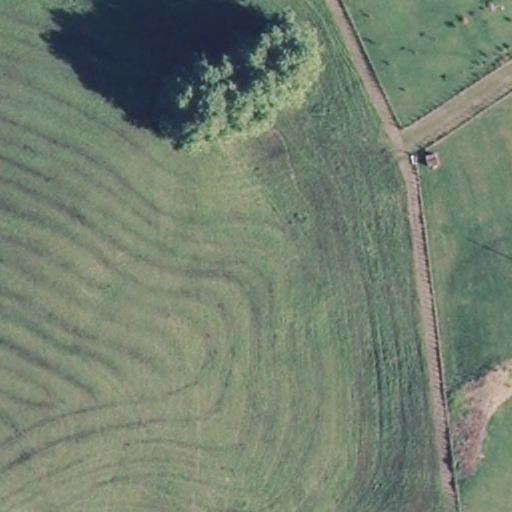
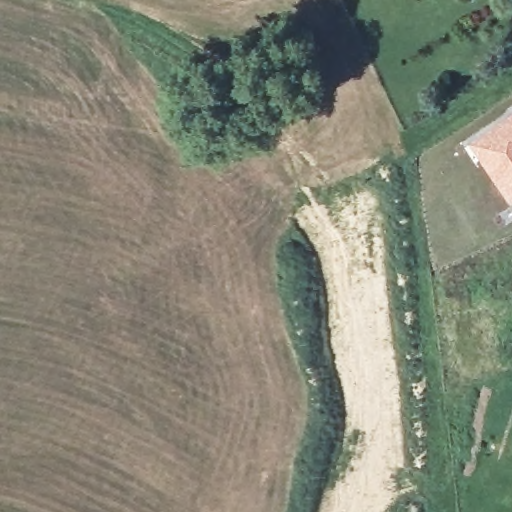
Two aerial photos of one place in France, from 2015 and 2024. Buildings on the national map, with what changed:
new [(512,198),(473,138),(512,111),(512,198)]

